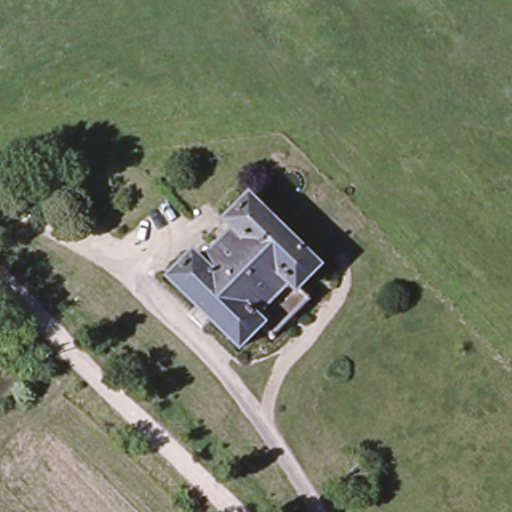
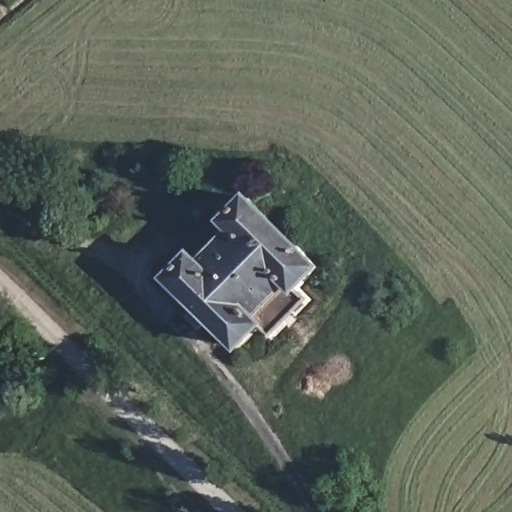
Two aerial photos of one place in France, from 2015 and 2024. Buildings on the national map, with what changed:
unchanged [(171,274),(199,244),(210,252),(234,232),(228,218),(249,196),(324,270),(240,348),(171,274)]

